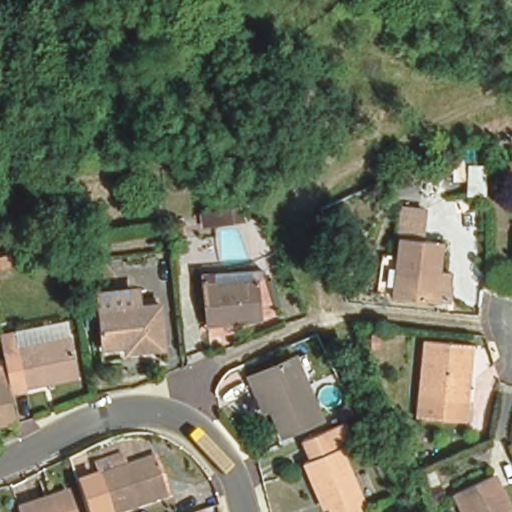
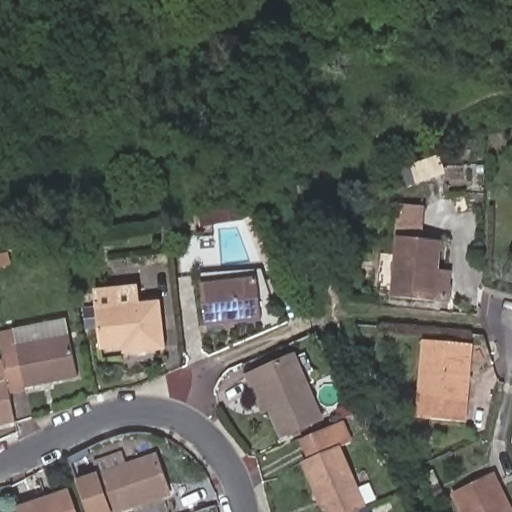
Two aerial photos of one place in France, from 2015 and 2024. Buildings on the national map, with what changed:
unchanged [(234,205),(240,218),(199,227),(198,213),(234,205)]
unchanged [(451,289),(437,289),(437,291),(394,289),(398,229),(439,232),(438,260),(452,260),(451,289)]
unchanged [(18,275),(0,279),(0,267),(15,264),(18,275)]
unchanged [(206,327),(201,287),(199,275),(253,269),(254,281),(259,321),(206,327)]
unchanged [(94,312),(91,287),(140,282),(143,306),(94,312)]
unchanged [(162,350),(124,354),(124,348),(99,350),(94,312),(143,306),(156,304),(162,350)]
unchanged [(68,334),(77,374),(25,385),(26,388),(10,391),(7,374),(4,357),(0,339),(0,334),(14,331),(65,320),(68,334)]
unchanged [(466,398),(465,415),(416,413),(418,395),(421,338),(469,342),(466,398)]
unchanged [(15,417),(0,420),(0,357),(4,357),(7,374),(10,391),(15,417)]
unchanged [(252,394),(245,378),(292,359),(318,423),(279,438),(268,412),(259,414),(252,394)]
unchanged [(315,494),(301,460),(306,459),(298,439),(313,433),(325,428),(341,422),(349,441),(337,446),(363,507),(353,511),(351,512),(328,512),(325,504),(320,507),(315,494)]
unchanged [(81,484),(98,478),(100,476),(95,462),(125,451),(129,466),(156,456),(169,494),(120,512),(91,512),(83,488),(81,484)]
unchanged [(512,503),(512,512),(469,512),(454,484),(493,466),(512,503)]
unchanged [(24,506),(69,489),(75,487),(78,494),(84,512),(26,512),(24,506)]
unchanged [(353,512),(351,512),(353,511),(353,512)]

